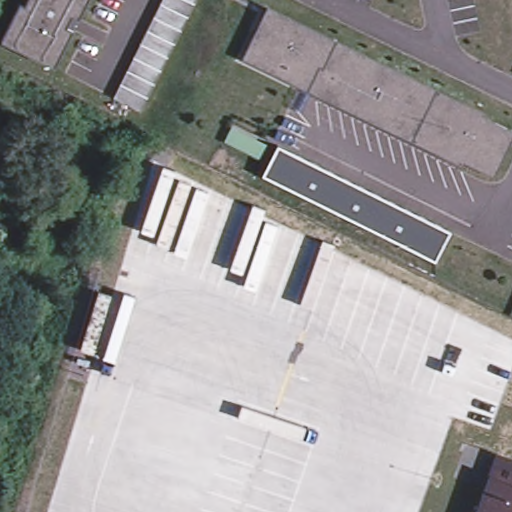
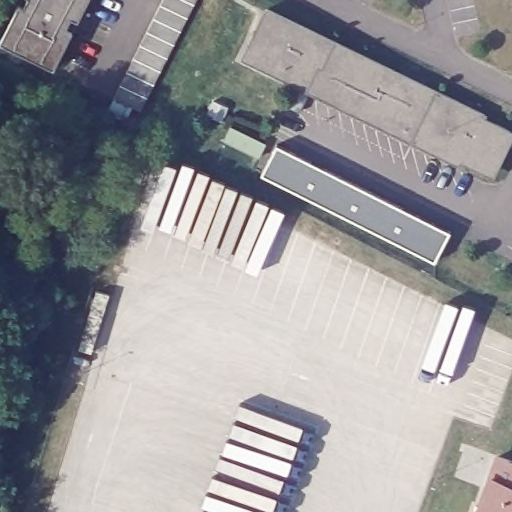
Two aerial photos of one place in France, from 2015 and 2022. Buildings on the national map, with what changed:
unchanged [(0,35),(16,2),(20,5),(23,0),(84,0),(75,18),(68,15),(62,26),(70,29),(50,67),(0,41),(0,35)]
unchanged [(142,110),(113,95),(161,0),(197,0),(142,110)]
unchanged [(488,115),(486,118),(512,131),(512,134),(492,174),(465,161),(463,165),(245,57),(270,7),(488,115)]
unchanged [(259,174),(275,144),(448,232),(433,262),(259,174)]
unchanged [(474,512),(496,452),(512,458),(512,512),(474,512)]

